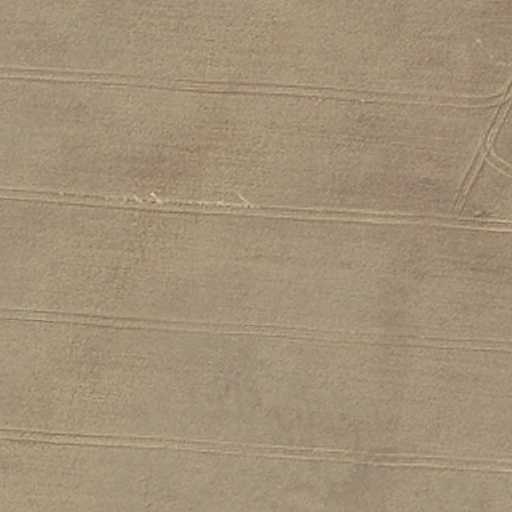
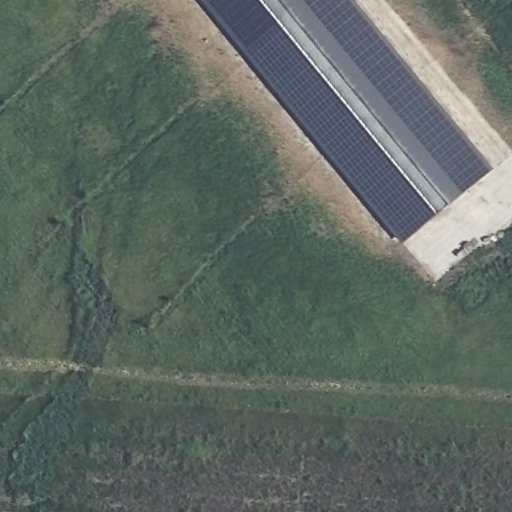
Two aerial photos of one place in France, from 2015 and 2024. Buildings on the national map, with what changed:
new [(494,168),(401,245),(202,0),(360,0),(494,168)]

